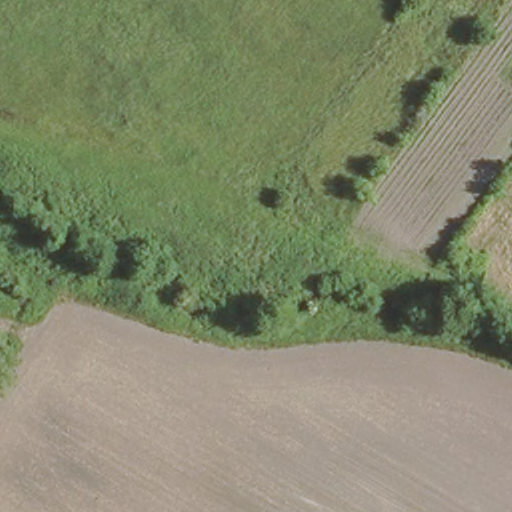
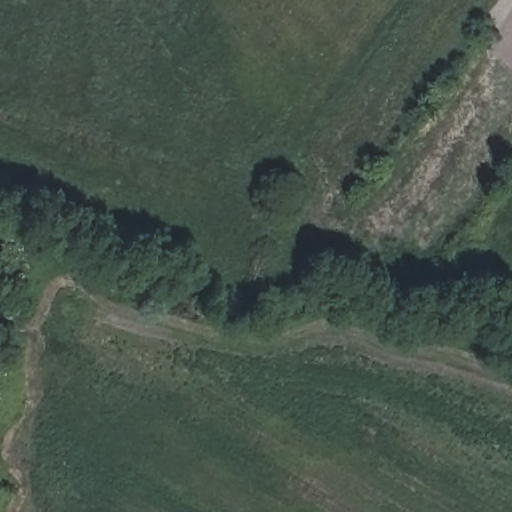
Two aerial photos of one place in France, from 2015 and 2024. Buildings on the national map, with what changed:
[]

